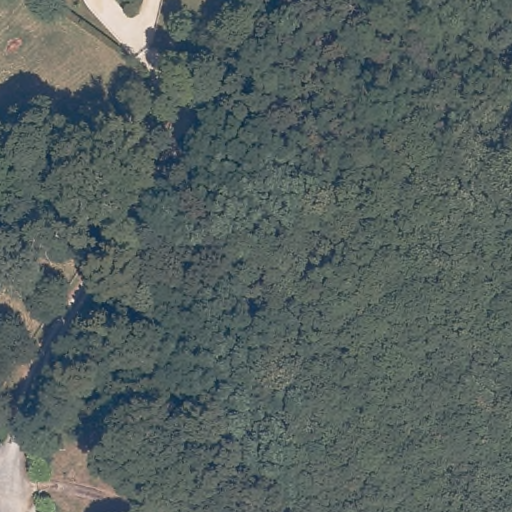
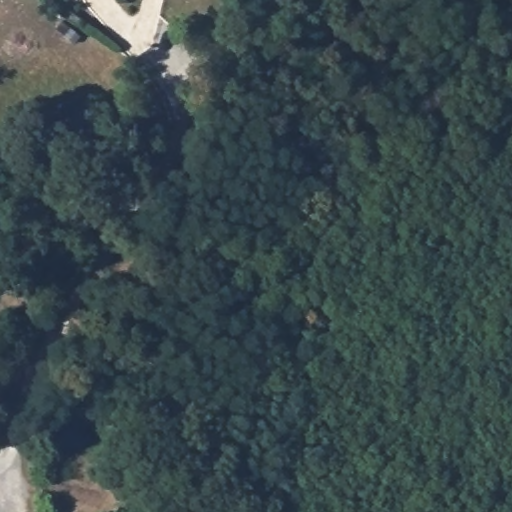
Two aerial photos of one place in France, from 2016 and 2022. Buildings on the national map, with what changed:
[]

